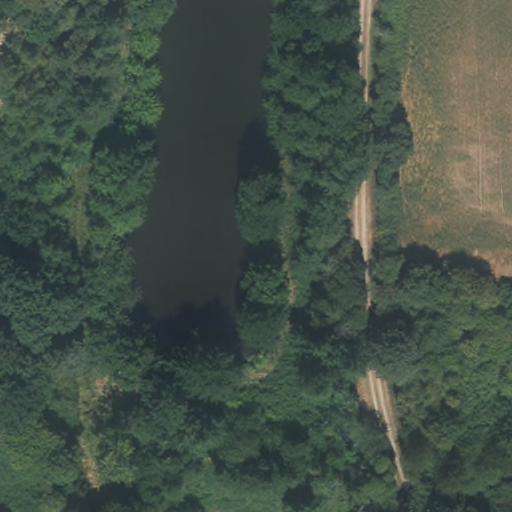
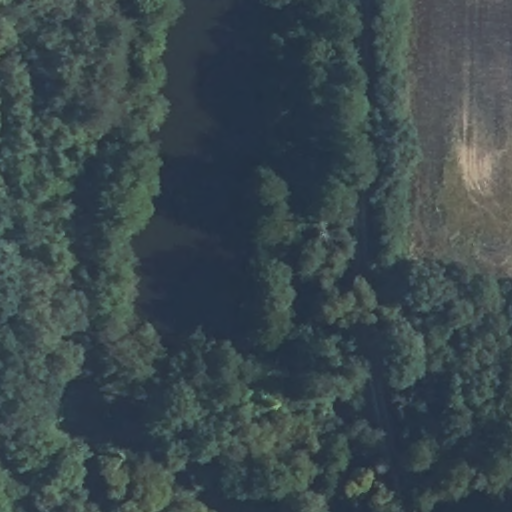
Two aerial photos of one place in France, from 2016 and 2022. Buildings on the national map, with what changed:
unchanged [(134,37),(134,59),(122,59),(124,37),(134,37)]

